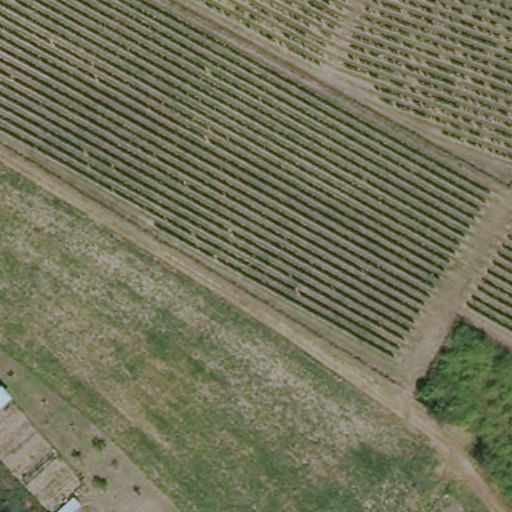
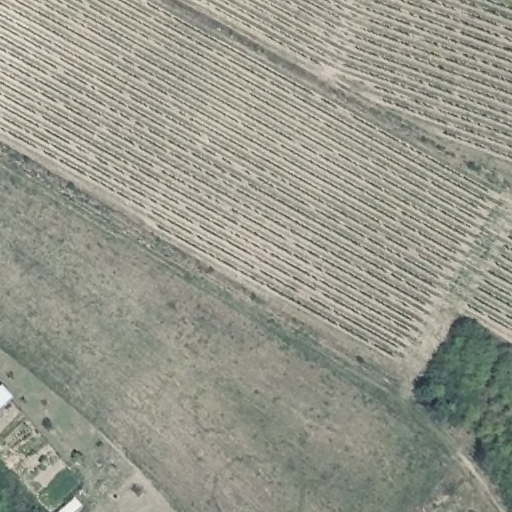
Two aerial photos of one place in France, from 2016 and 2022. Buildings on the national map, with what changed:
unchanged [(11,397),(0,405),(0,384),(11,397)]

